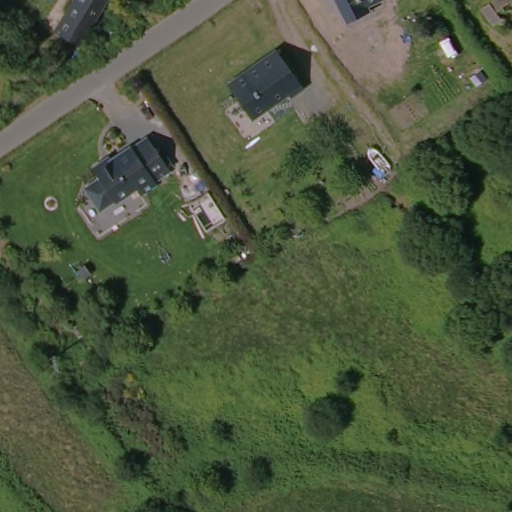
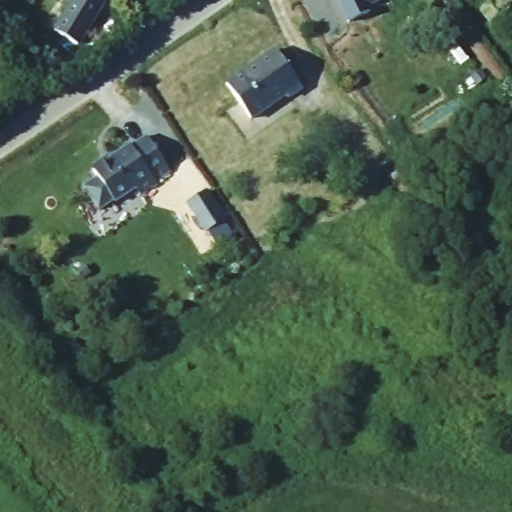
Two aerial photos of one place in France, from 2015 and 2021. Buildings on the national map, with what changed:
unchanged [(69,32),(47,15),(60,0),(94,0),(69,32)]
unchanged [(362,8),(357,0),(373,0),(362,8)]
unchanged [(276,45),(304,81),(292,90),(290,87),(255,113),(230,80),(276,45)]
unchanged [(102,177),(99,171),(138,145),(140,150),(157,138),(175,169),(162,180),(164,185),(149,195),(141,186),(122,199),(116,197),(101,207),(87,190),(102,177)]

